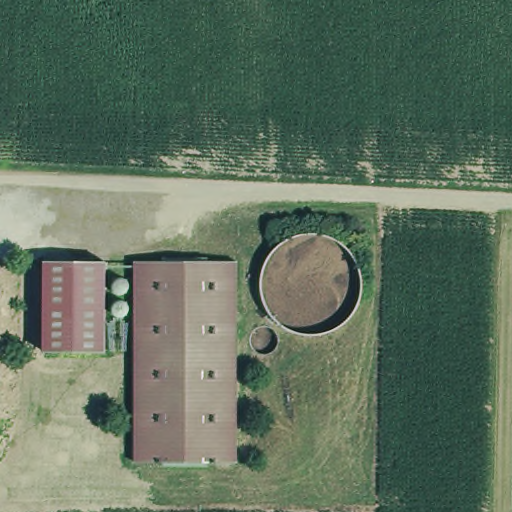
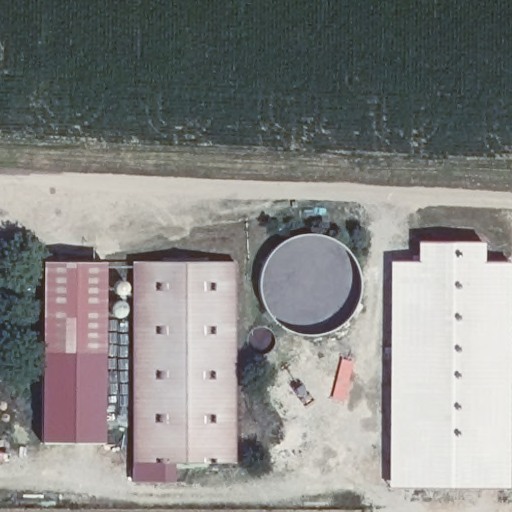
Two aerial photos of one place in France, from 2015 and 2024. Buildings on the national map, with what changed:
new [(388,260),(415,261),(416,240),(483,241),(483,261),(508,261),(507,378),(508,487),(388,487),(388,260)]
unchanged [(102,258),(100,348),(41,347),(42,257),(102,258)]
unchanged [(238,260),(236,458),(135,457),(137,258),(238,260)]
new [(100,348),(101,445),(41,446),(41,347),(100,348)]

